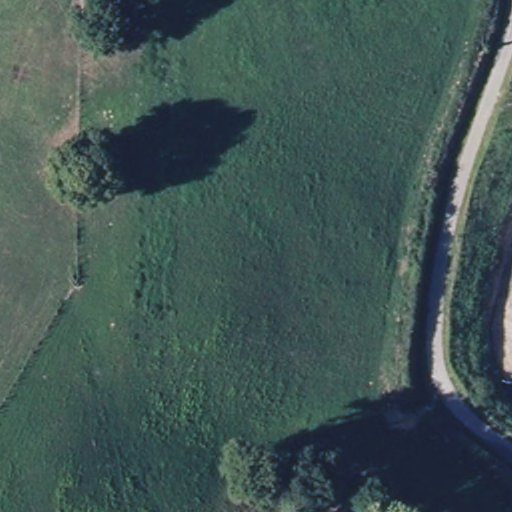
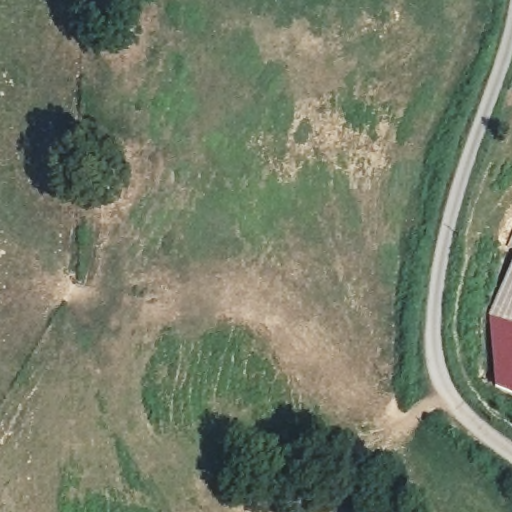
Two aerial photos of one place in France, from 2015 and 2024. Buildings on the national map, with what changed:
new [(506,246),(512,233),(512,248),(506,246)]
new [(495,384),(488,312),(512,261),(512,392),(495,384)]

